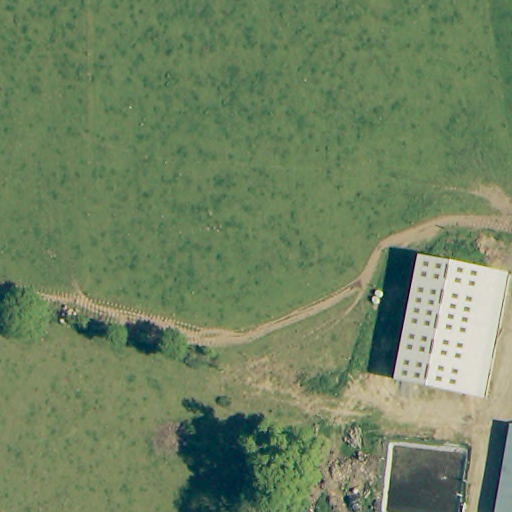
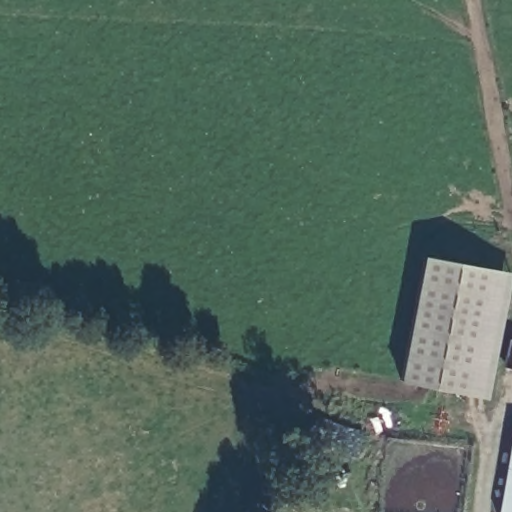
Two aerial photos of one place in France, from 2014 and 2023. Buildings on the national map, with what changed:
unchanged [(511,275),(488,399),(400,382),(422,257),(511,275)]
unchanged [(512,432),(512,512),(504,512),(512,432)]

